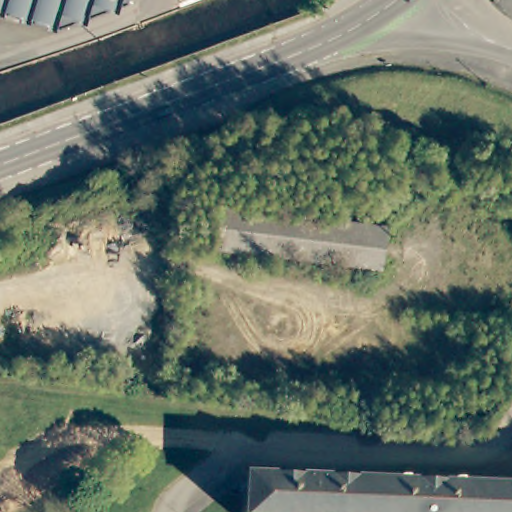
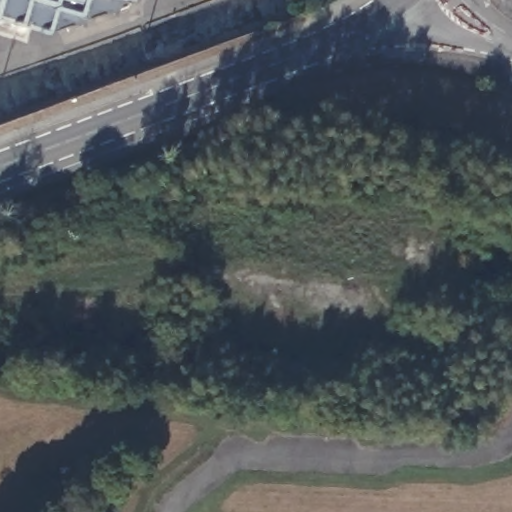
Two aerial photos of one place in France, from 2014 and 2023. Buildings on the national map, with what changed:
unchanged [(125,3),(60,30),(0,13),(0,0),(126,0),(125,3)]
unchanged [(211,249),(217,206),(384,226),(377,269),(211,249)]
demolished [(238,512),(239,483),(302,486),(315,486),(415,489),(431,489),(512,493),(512,512),(238,512)]

